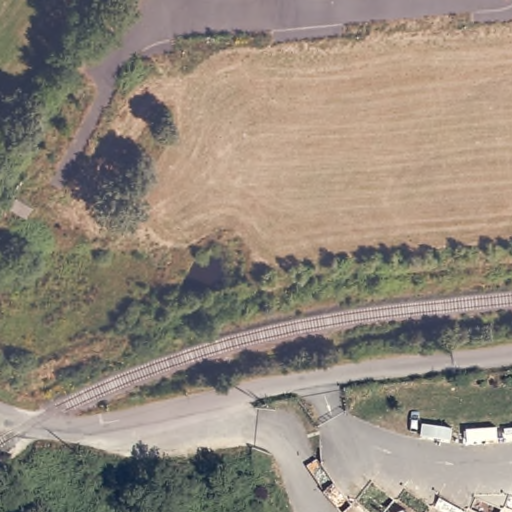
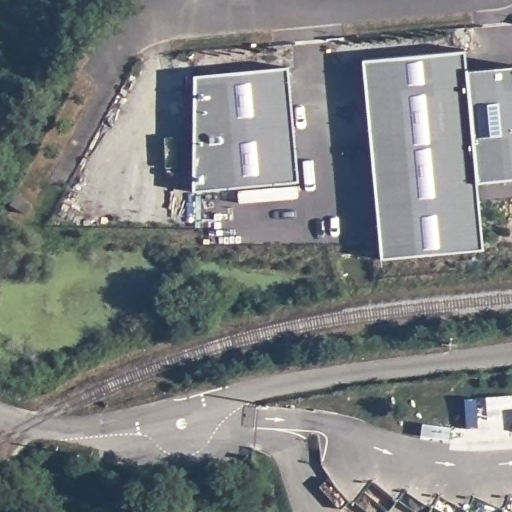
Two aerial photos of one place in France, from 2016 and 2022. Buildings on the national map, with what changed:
new [(381,259),(362,59),(465,50),(466,69),(512,65),(512,181),(477,185),(483,249),(381,259)]
new [(191,77),(284,69),(295,184),(190,194),(191,77)]
new [(16,198),(31,207),(26,217),(10,207),(16,198)]
demolished [(465,385),(494,377),(497,390),(467,397),(465,385)]
unchanged [(465,398),(495,391),(498,403),(468,410),(465,398)]

